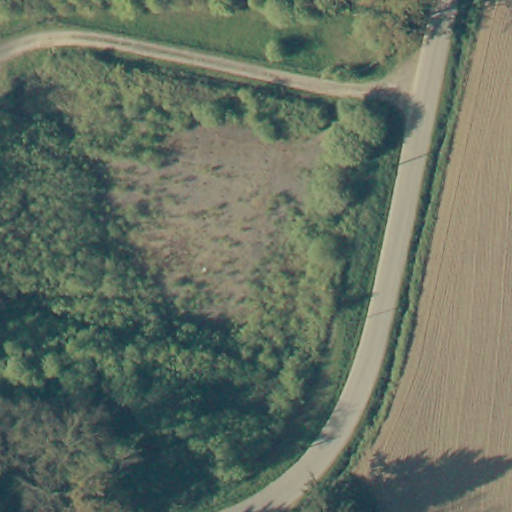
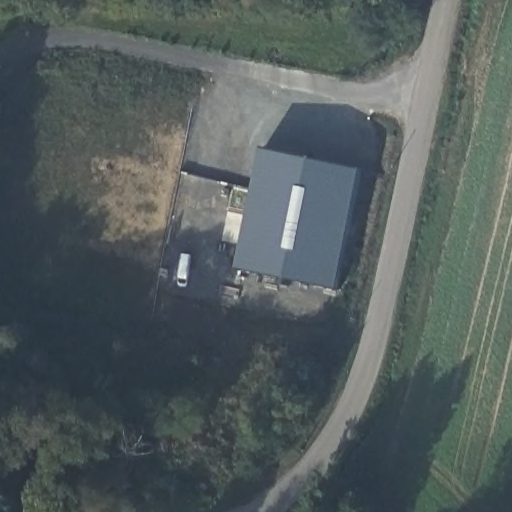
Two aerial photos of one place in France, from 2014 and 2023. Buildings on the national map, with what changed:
new [(264,150),(362,169),(337,293),(239,273),(264,150)]

